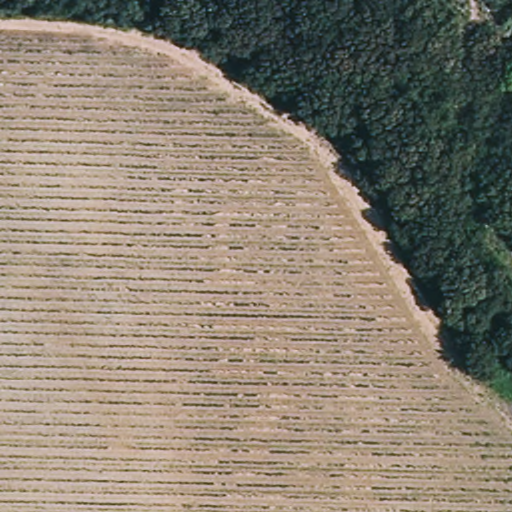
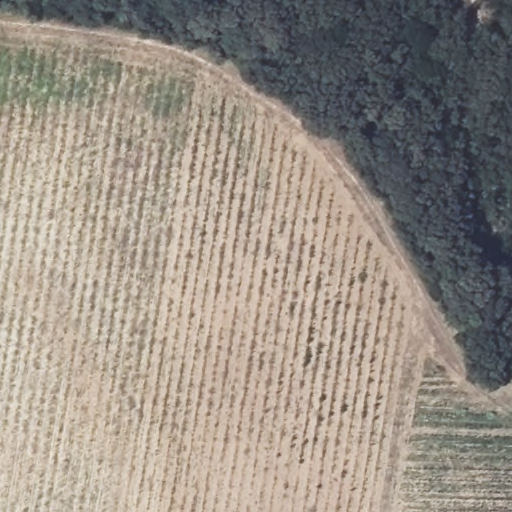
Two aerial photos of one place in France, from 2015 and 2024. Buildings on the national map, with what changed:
[]

